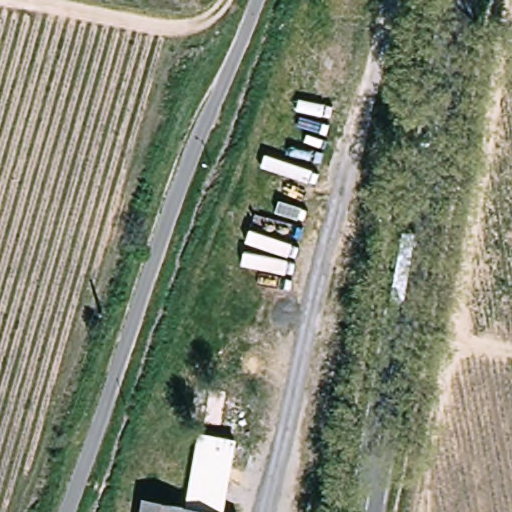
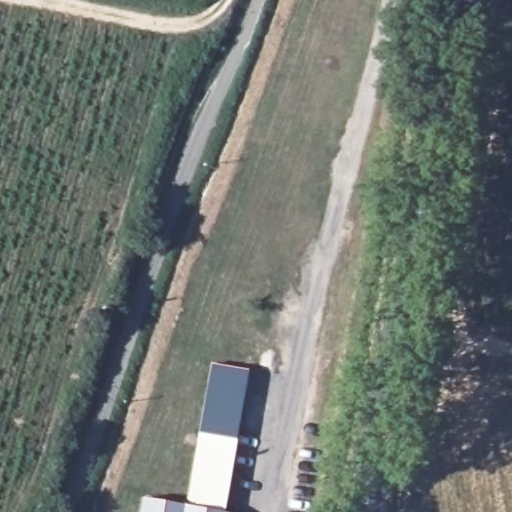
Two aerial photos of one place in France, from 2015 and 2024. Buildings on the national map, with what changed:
new [(200,430),(211,365),(248,368),(237,436),(200,430)]
demolished [(212,387),(232,390),(226,426),(205,422),(212,387)]
unchanged [(200,430),(237,436),(222,512),(209,512),(185,507),(200,430)]
unchanged [(209,512),(142,512),(145,500),(185,507),(209,512)]

